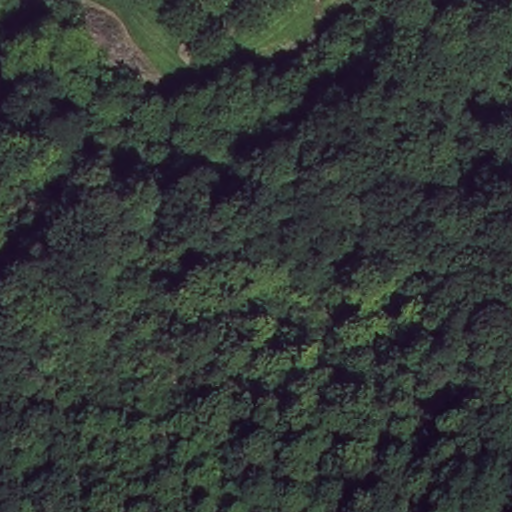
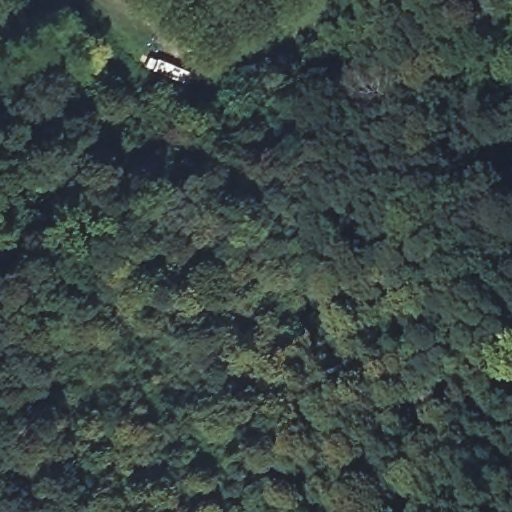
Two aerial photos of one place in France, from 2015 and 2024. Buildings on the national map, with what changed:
[]

